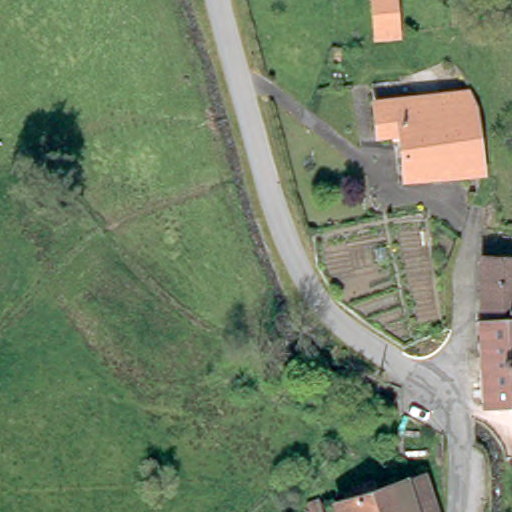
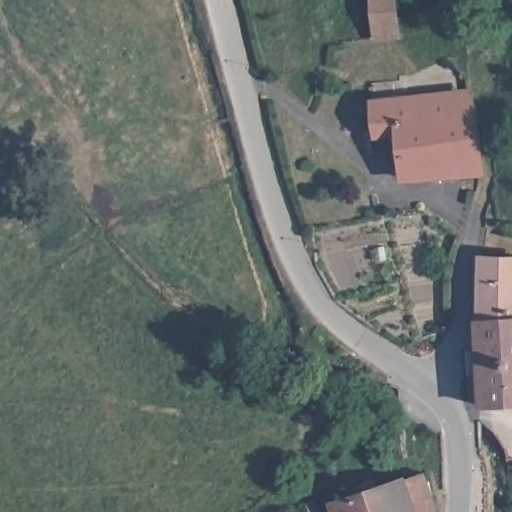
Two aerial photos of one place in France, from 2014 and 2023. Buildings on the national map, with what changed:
unchanged [(397,36),(375,36),(374,0),(396,0),(397,36)]
unchanged [(392,130),(378,131),(375,80),(397,79),(397,101),(471,97),(480,174),(405,176),(402,152),(401,135),(392,136),(392,130)]
unchanged [(478,293),(480,253),(512,256),(512,314),(477,316),(477,306),(473,305),(473,293),(478,293)]
unchanged [(475,325),(475,316),(477,316),(512,314),(512,401),(478,402),(475,325)]
unchanged [(430,512),(406,512),(405,508),(398,511),(391,487),(420,476),(430,512)]
unchanged [(357,488),(369,484),(372,493),(385,489),(391,487),(398,511),(405,508),(406,512),(332,512),(330,507),(360,497),(357,488)]

